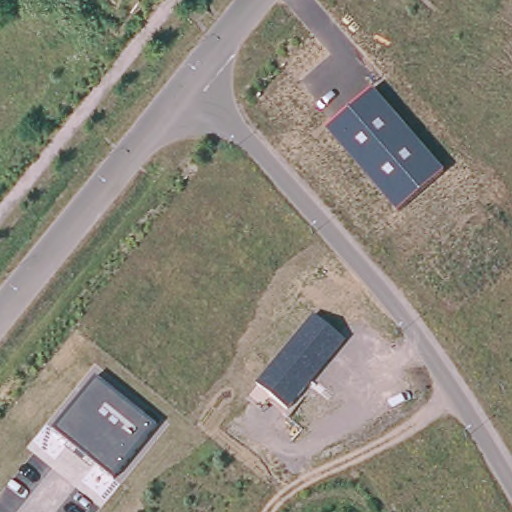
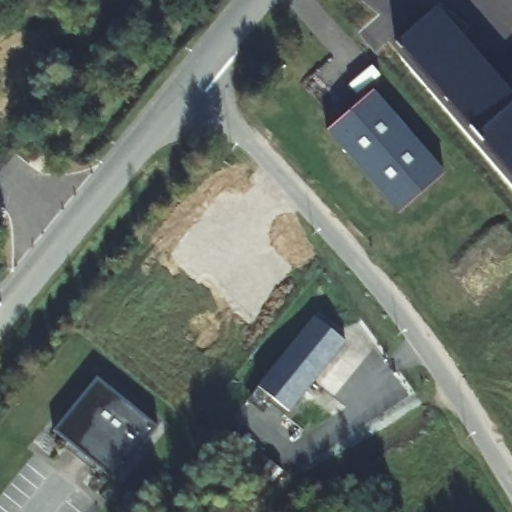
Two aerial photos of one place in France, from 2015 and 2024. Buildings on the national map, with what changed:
new [(477,133),(395,42),(435,8),(512,95),(512,175),(477,133)]
unchanged [(446,172),(397,212),(328,131),(376,89),(446,172)]
unchanged [(317,316),(347,341),(288,412),(259,387),(317,316)]
unchanged [(157,428),(116,480),(54,431),(95,380),(157,428)]

